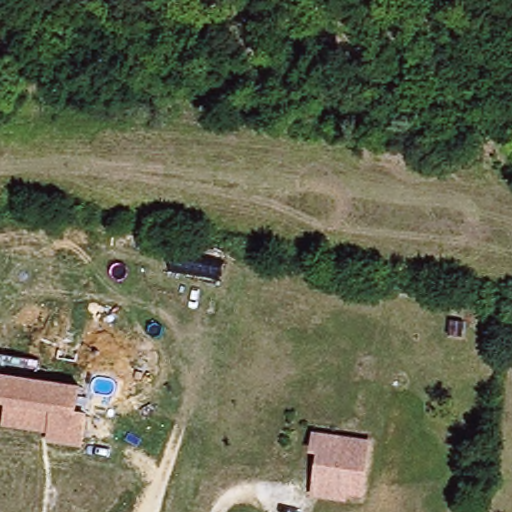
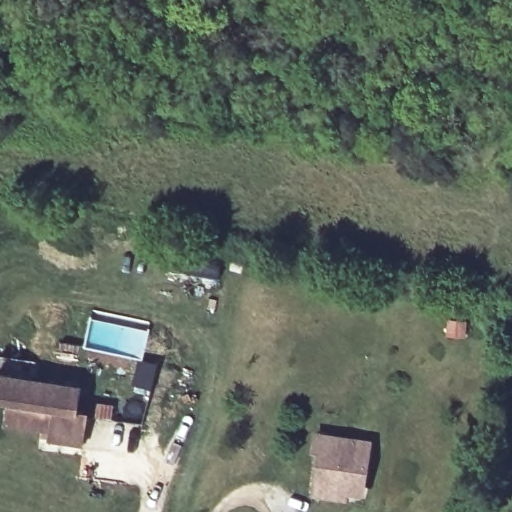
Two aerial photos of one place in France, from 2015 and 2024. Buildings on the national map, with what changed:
unchanged [(76,415),(72,446),(48,443),(50,433),(4,427),(6,407),(0,406),(0,378),(90,391),(87,417),(76,415)]
unchanged [(312,500),(312,493),(317,457),(310,456),(312,440),(335,443),(366,448),(360,496),(345,493),(344,497),(343,504),(312,500)]

